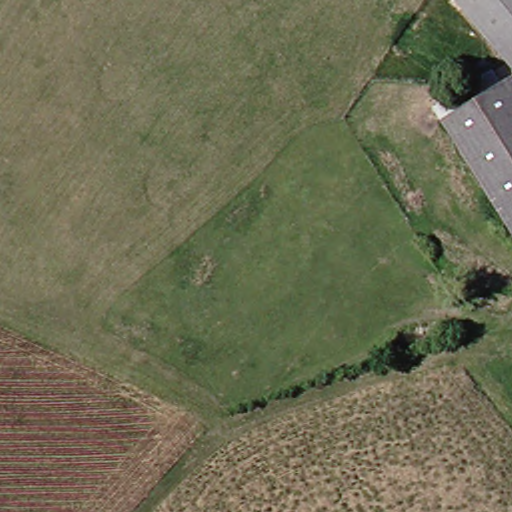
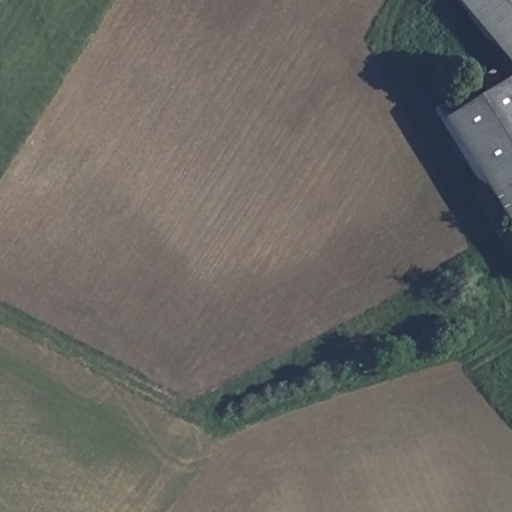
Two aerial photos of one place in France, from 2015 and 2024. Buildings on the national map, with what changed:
unchanged [(447,3),(450,0),(512,0),(512,77),(447,3)]
unchanged [(441,123),(505,85),(512,96),(512,235),(441,123)]

